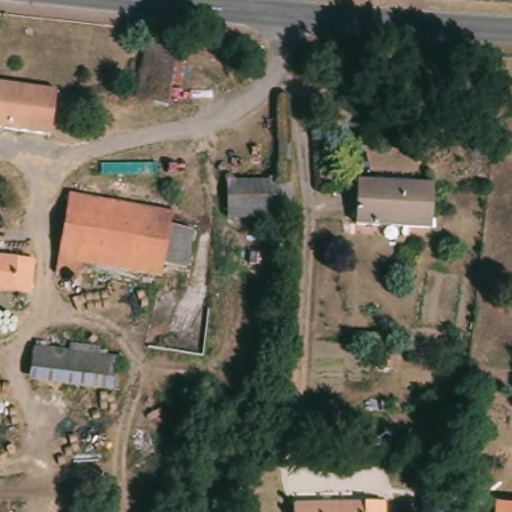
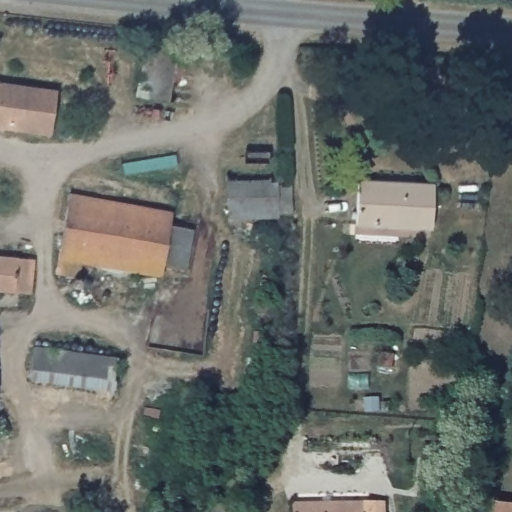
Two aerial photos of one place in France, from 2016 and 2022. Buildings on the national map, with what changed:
unchanged [(177,105),(139,101),(146,44),(182,49),(177,105)]
unchanged [(47,134),(0,130),(0,84),(52,91),(47,134)]
unchanged [(428,232),(351,227),(355,183),(434,189),(428,232)]
unchanged [(225,219),(224,185),(275,184),(276,218),(225,219)]
unchanged [(177,213),(173,226),(193,228),(183,269),(163,265),(162,275),(82,264),(80,278),(56,276),(67,197),(177,213)]
unchanged [(34,262),(29,295),(0,292),(0,258),(34,262)]
unchanged [(110,399),(85,397),(86,382),(26,374),(29,351),(116,359),(110,399)]
unchanged [(398,498),(397,512),(294,512),(295,493),(398,498)]
unchanged [(489,509),(512,512),(489,512),(489,509)]

